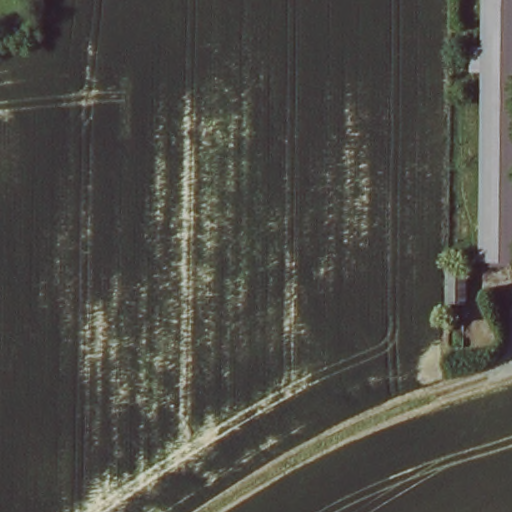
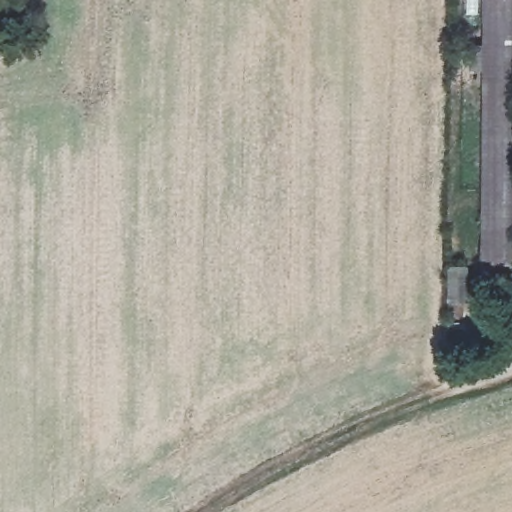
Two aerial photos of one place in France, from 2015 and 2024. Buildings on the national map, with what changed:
unchanged [(487,0),(512,0),(512,261),(480,259),(487,0)]
unchanged [(449,288),(466,288),(465,323),(448,322),(449,288)]

